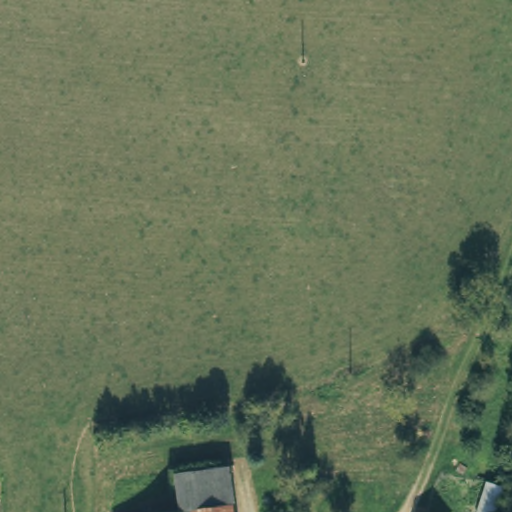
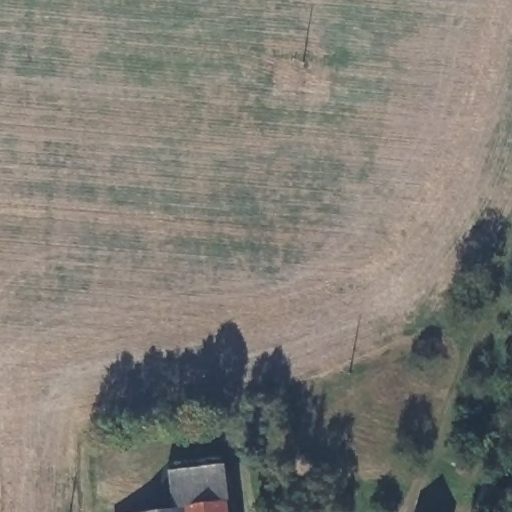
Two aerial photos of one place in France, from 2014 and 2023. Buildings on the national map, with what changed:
unchanged [(230,504),(193,508),(182,509),(179,473),(229,468),(230,504)]
unchanged [(495,512),(475,512),(483,485),(501,490),(495,512)]
unchanged [(230,504),(231,512),(193,512),(193,508),(230,504)]
unchanged [(193,508),(193,512),(162,512),(182,509),(193,508)]

